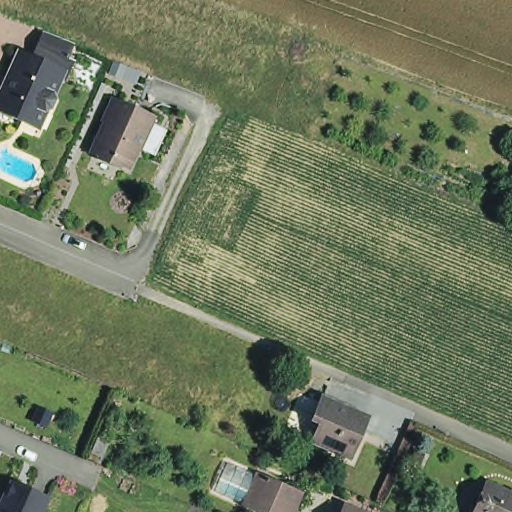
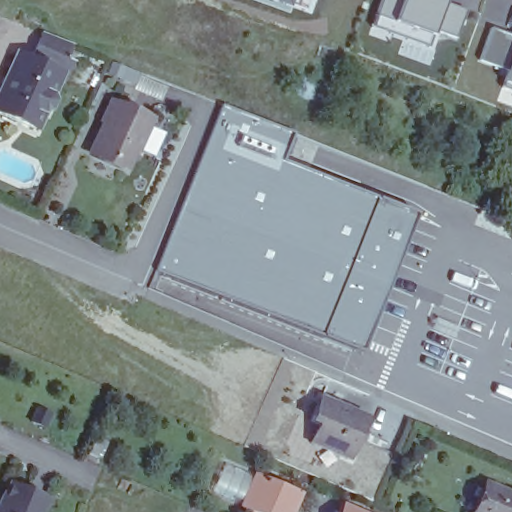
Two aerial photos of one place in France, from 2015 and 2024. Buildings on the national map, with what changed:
new [(300,10),(287,5),(285,9),(263,0),(305,0),(300,10)]
new [(454,39),(434,31),(426,50),(370,27),(380,0),(446,0),(445,3),(465,11),(454,39)]
new [(512,34),(512,53),(505,72),(476,61),(490,26),(512,34)]
unchanged [(40,135),(0,122),(0,90),(17,51),(25,56),(34,41),(69,54),(40,135)]
new [(512,53),(512,89),(501,85),(505,72),(512,53)]
unchanged [(148,118),(125,167),(92,152),(115,102),(148,118)]
new [(295,132),(285,159),(415,211),(362,351),(157,268),(222,102),(295,132)]
unchanged [(512,181),(512,187),(510,186),(512,181)]
unchanged [(319,425),(311,422),(321,399),(345,410),(345,407),(359,412),(357,415),(366,418),(350,457),(312,441),(319,425)]
unchanged [(95,437),(105,442),(99,457),(89,452),(95,437)]
unchanged [(289,512),(261,512),(257,510),(247,506),(262,474),(271,478),(299,491),(289,512)]
unchanged [(0,512),(0,499),(8,478),(53,497),(46,512),(0,512)]
unchanged [(512,494),(512,512),(476,512),(488,484),(512,494)]
unchanged [(369,512),(341,512),(345,502),(369,512)]

